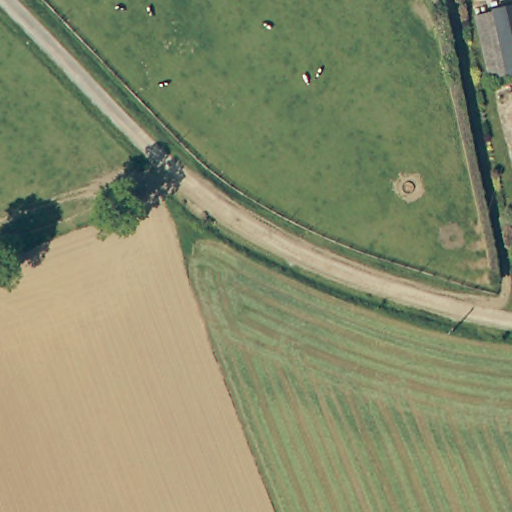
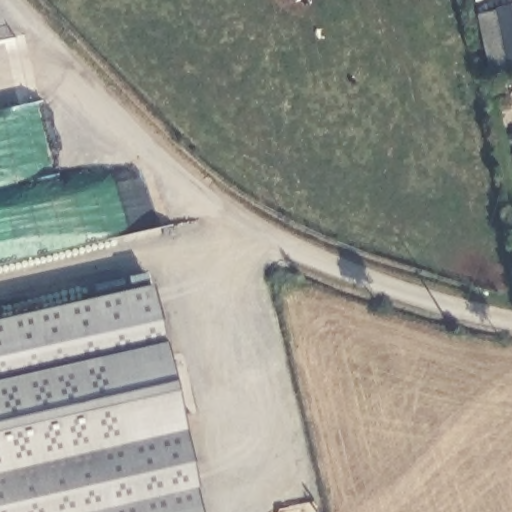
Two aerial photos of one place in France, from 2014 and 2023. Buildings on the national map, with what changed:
unchanged [(512,71),(501,73),(500,64),(511,63),(502,2),(512,0),(512,71)]
unchanged [(511,63),(500,64),(501,73),(493,75),(483,6),(502,2),(511,63)]
new [(0,512),(0,319),(150,285),(200,512),(0,512)]

